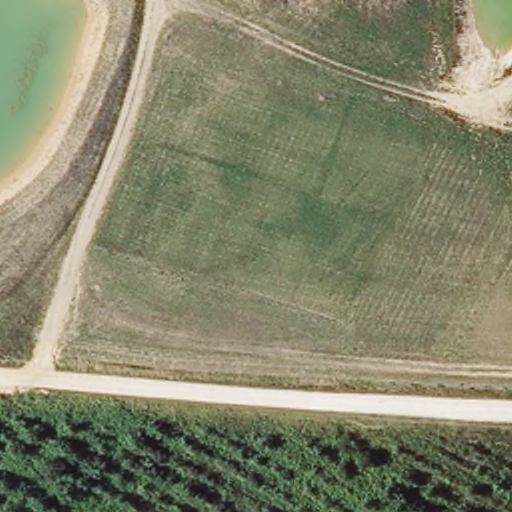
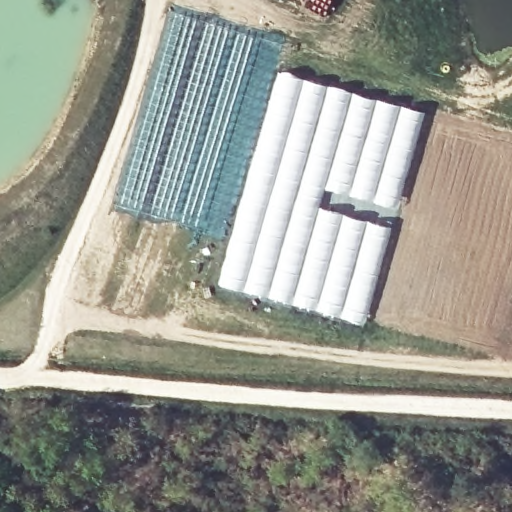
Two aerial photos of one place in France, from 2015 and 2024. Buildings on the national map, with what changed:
new [(250,160),(278,70),(425,113),(363,326),(215,286),(250,160)]

